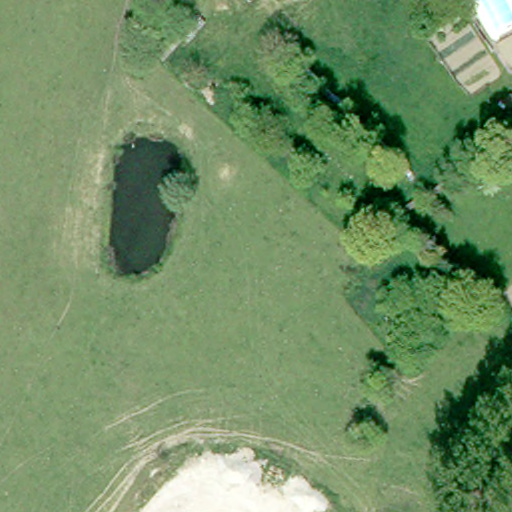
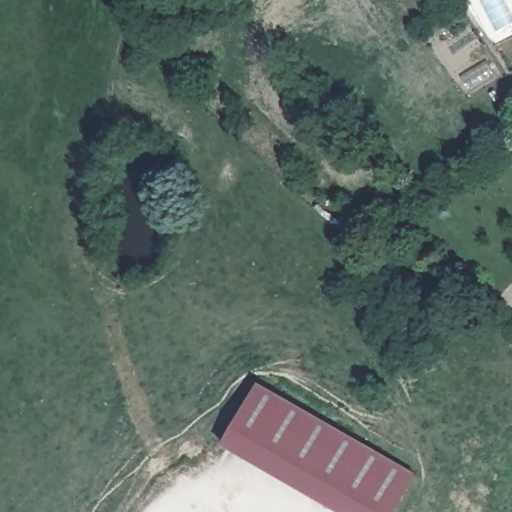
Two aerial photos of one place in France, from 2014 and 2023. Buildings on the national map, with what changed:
unchanged [(253,0),(262,0),(257,5),(253,0)]
new [(417,472),(393,512),(341,512),(224,444),(262,380),(417,472)]

